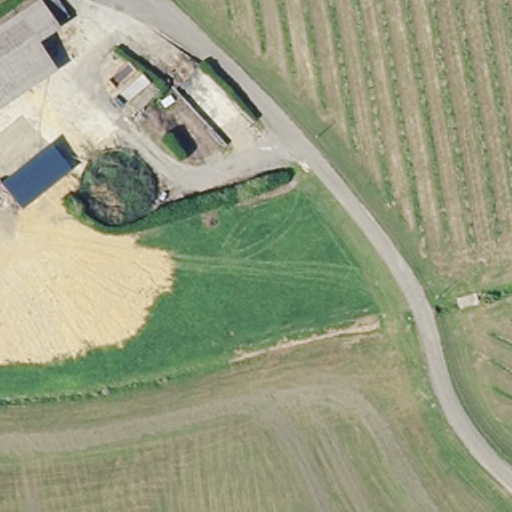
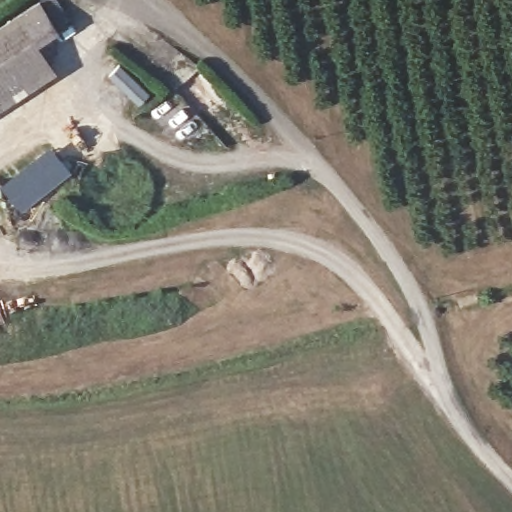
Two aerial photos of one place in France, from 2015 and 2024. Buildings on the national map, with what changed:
unchanged [(30,55),(16,26),(67,1),(81,29),(41,50),(30,55)]
unchanged [(56,81),(0,108),(0,33),(16,26),(30,55),(41,50),(56,81)]
unchanged [(50,146),(72,170),(24,211),(0,185),(50,146)]

